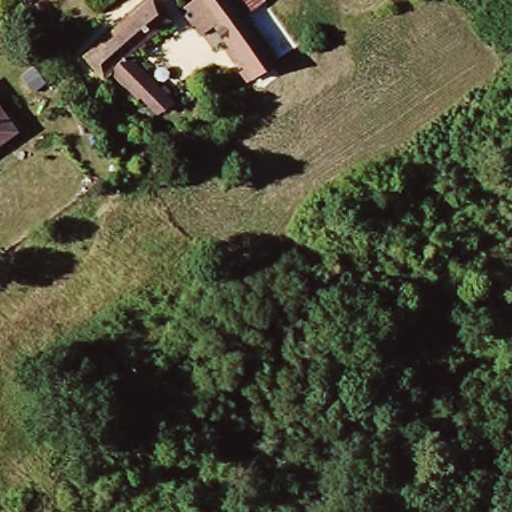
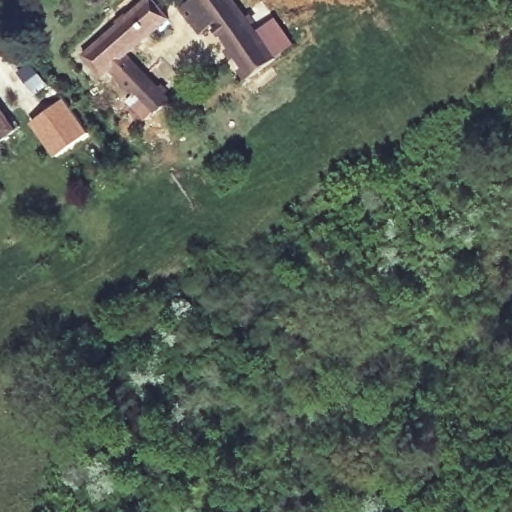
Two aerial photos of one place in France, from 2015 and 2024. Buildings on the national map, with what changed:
unchanged [(123,50),(164,99),(150,110),(112,63),(97,74),(80,52),(142,0),(151,0),(165,16),(123,50)]
unchanged [(185,0),(230,0),(255,34),(271,55),(247,71),(210,20),(199,28),(181,3),(185,0)]
unchanged [(255,34),(230,0),(265,0),(278,18),(255,34)]
new [(24,68),(22,65),(30,61),(49,85),(35,95),(18,73),(24,68)]
new [(64,98),(88,133),(53,158),(30,124),(64,98)]
unchanged [(0,137),(0,119),(8,131),(0,137)]
unchanged [(132,129),(140,128),(142,135),(135,137),(132,129)]

